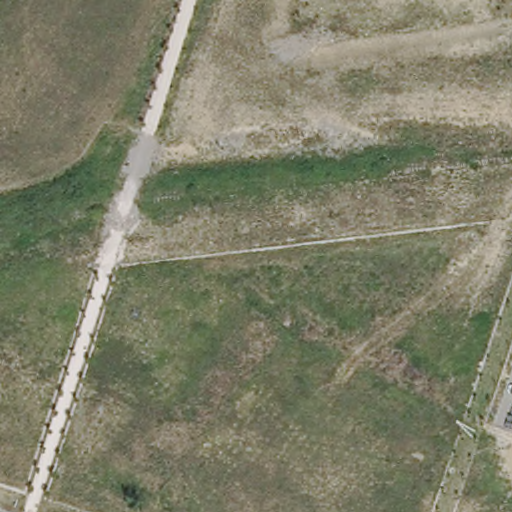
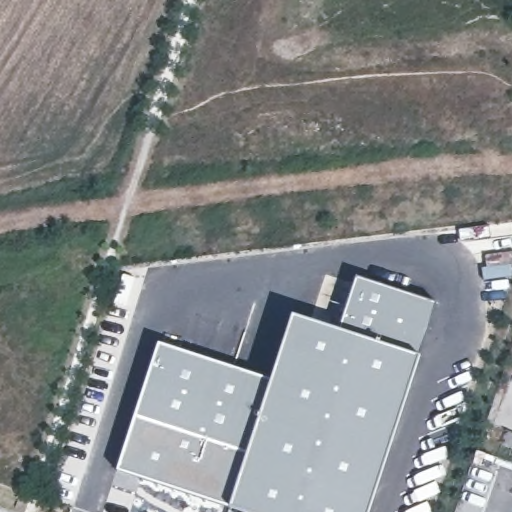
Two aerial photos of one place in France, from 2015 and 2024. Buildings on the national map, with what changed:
new [(273,380),(295,315),(342,331),(358,280),(439,305),(422,360),(372,512),(254,512),(232,505),(118,472),(159,343),(273,380)]

